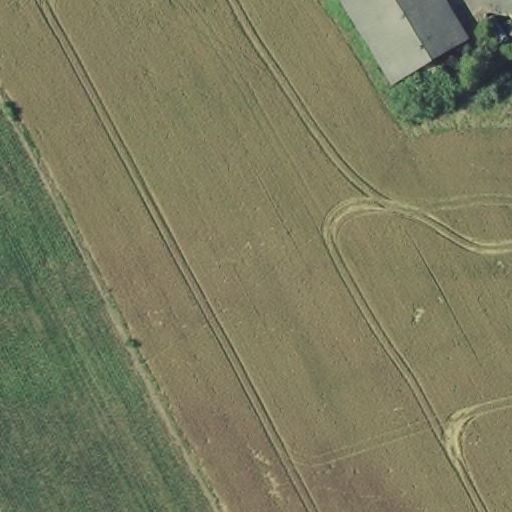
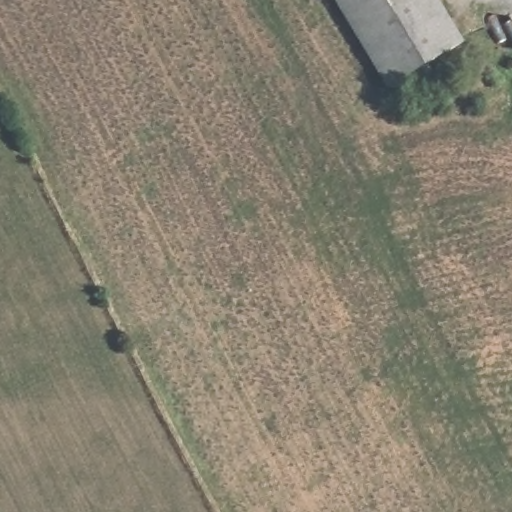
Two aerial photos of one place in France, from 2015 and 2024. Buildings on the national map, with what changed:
unchanged [(391,87),(339,0),(439,0),(464,42),(391,87)]

